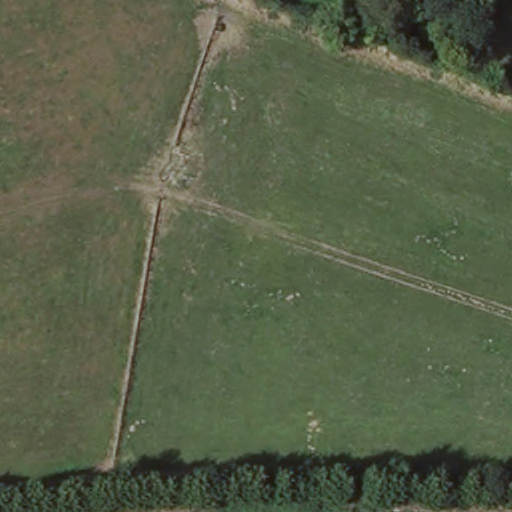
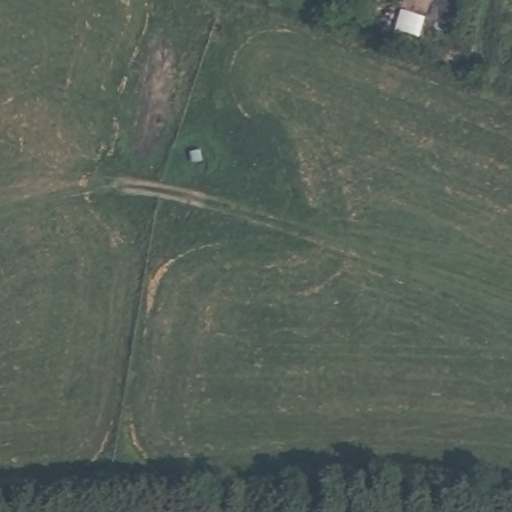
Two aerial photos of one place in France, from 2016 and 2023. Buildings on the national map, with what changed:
[]

